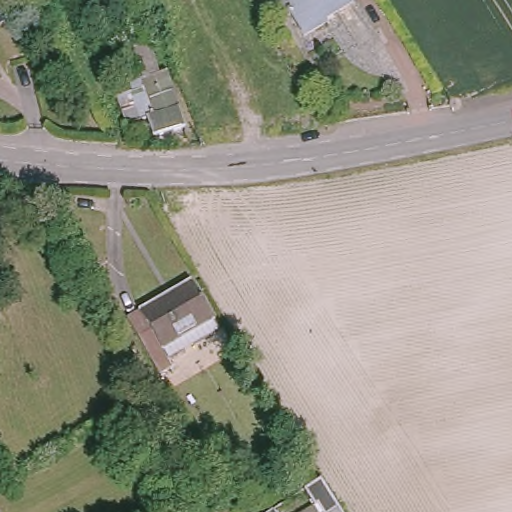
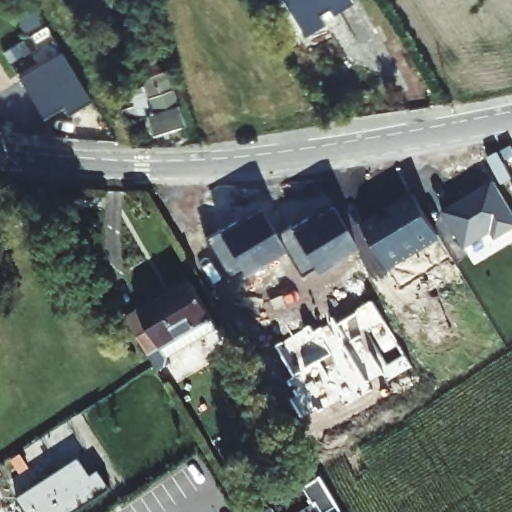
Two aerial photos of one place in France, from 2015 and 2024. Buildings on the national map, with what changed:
unchanged [(332,19),(303,35),(282,0),(345,0),(327,11),(332,19)]
unchanged [(115,55),(143,41),(156,69),(163,66),(187,121),(162,134),(150,109),(123,122),(116,103),(133,95),(115,55)]
new [(60,54),(89,101),(65,115),(60,106),(41,118),(18,80),(60,54)]
new [(466,249),(443,211),(494,181),(512,211),(512,230),(496,240),(492,233),(466,249)]
new [(361,224),(412,192),(441,239),(390,270),(361,224)]
new [(290,227),(291,230),(334,206),(357,247),(316,272),(314,267),(303,274),(280,232),(290,227)]
new [(219,231),(221,232),(261,208),(286,250),(245,274),(241,269),(229,276),(206,238),(219,231)]
unchanged [(216,326),(173,351),(167,342),(146,353),(123,315),(186,274),(209,313),(216,326)]
new [(298,395),(290,381),(296,376),(278,345),(312,325),(316,331),(336,319),(339,325),(359,312),(358,310),(374,301),(414,368),(388,382),(383,374),(368,383),(373,390),(346,406),(343,400),(321,411),(318,408),(302,417),(291,399),(298,395)]
new [(19,498),(80,459),(92,476),(100,471),(110,488),(72,512),(29,512),(19,498)]
unchanged [(283,512),(259,512),(275,501),(283,512)]
unchanged [(338,502),(344,512),(321,512),(338,502)]

